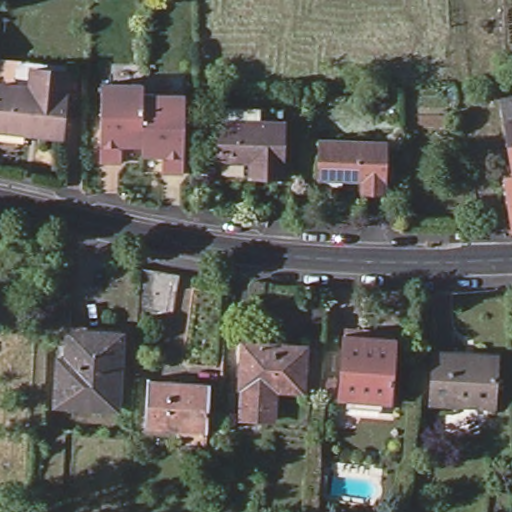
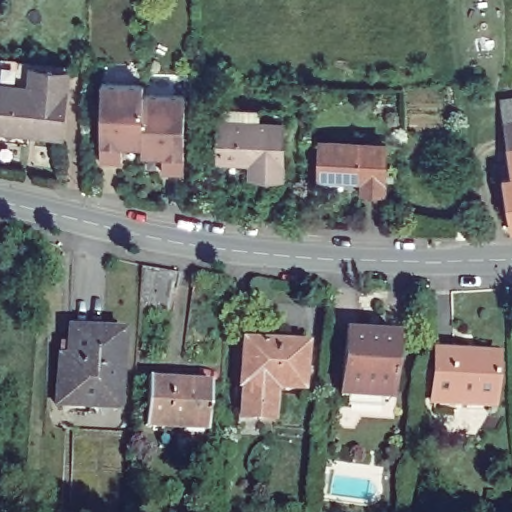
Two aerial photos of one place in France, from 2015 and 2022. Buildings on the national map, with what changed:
unchanged [(0,130),(0,64),(32,67),(67,71),(62,136),(0,130)]
unchanged [(142,146),(122,145),(121,162),(100,162),(102,84),(143,84),(143,94),(142,146)]
unchanged [(185,95),(183,173),(162,173),(162,156),(142,155),(142,146),(143,94),(185,95)]
unchanged [(503,122),(500,100),(512,98),(512,120),(503,122)]
unchanged [(282,177),(251,176),(252,161),(218,161),(219,121),(220,121),(220,109),(260,110),(282,110),(282,122),(283,122),(282,177)]
unchanged [(511,230),(502,176),(501,165),(510,163),(503,122),(512,120),(512,230),(511,230)]
unchanged [(363,192),(363,179),(319,177),(320,141),(385,143),(384,192),(363,192)]
unchanged [(457,231),(465,231),(465,238),(457,238),(457,231)]
unchanged [(167,312),(138,306),(140,267),(173,273),(167,312)]
unchanged [(64,327),(117,330),(112,403),(52,400),(54,355),(62,355),(64,327)]
unchanged [(390,402),(388,402),(342,398),(342,400),(340,400),(344,335),(347,335),(347,336),(393,340),(393,338),(395,338),(390,402)]
unchanged [(237,418),(238,387),(240,387),(240,362),(237,362),(237,342),(260,345),(300,347),(298,392),(270,390),(268,420),(237,418)]
unchanged [(432,403),(435,352),(455,353),(497,356),(497,361),(494,407),(432,403)]
unchanged [(210,385),(207,431),(145,427),(147,378),(150,378),(150,381),(210,385)]

